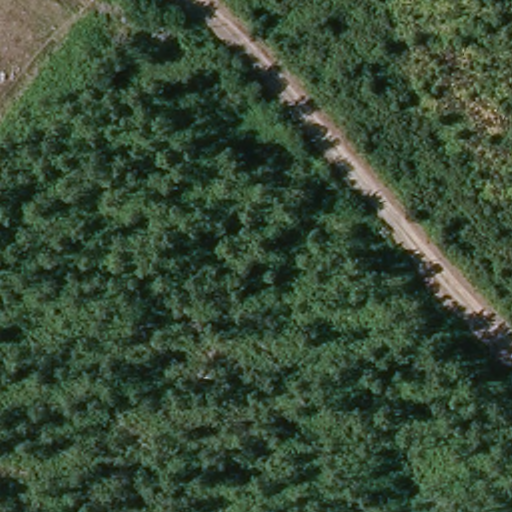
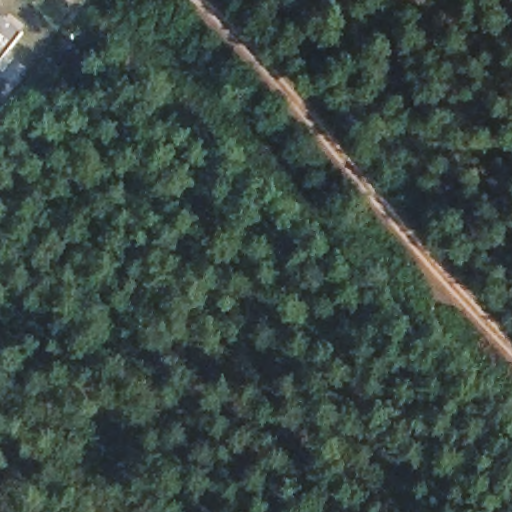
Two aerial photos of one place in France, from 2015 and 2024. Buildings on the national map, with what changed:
new [(22,33),(0,63),(0,18),(0,17),(22,33)]

